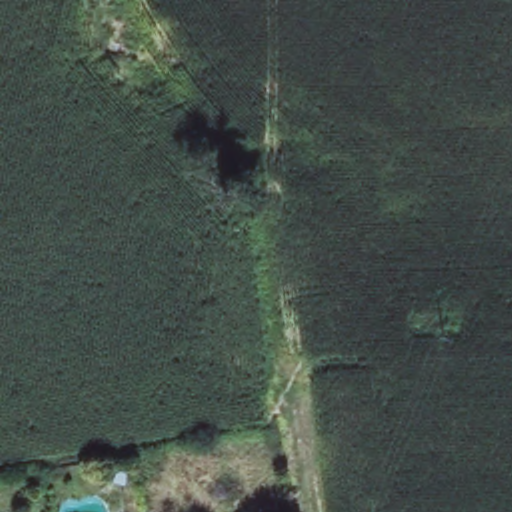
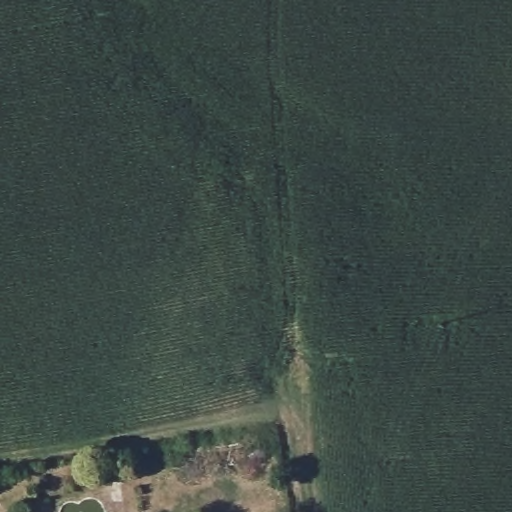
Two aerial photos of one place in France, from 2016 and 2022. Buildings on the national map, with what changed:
unchanged [(282,194),(280,219),(262,220),(262,191),(282,194)]

